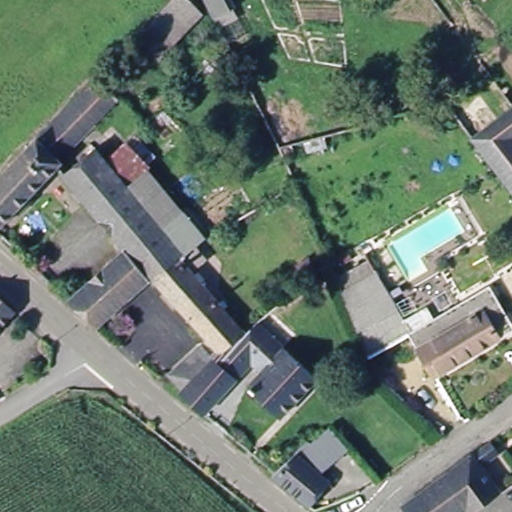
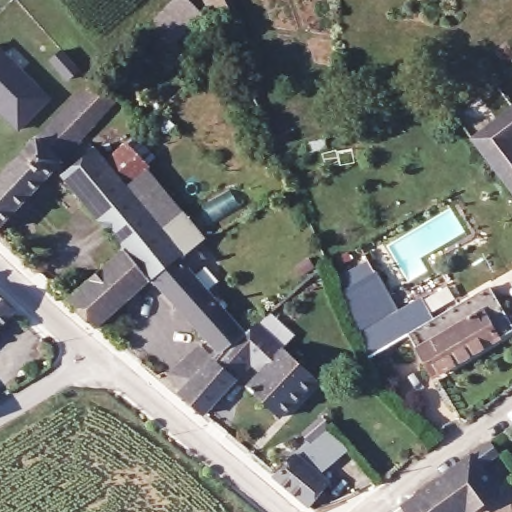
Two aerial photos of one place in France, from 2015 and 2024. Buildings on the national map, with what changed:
unchanged [(163,61),(143,34),(176,0),(190,0),(208,22),(163,61)]
unchanged [(230,0),(232,5),(208,22),(190,0),(230,0)]
new [(57,51),(75,70),(63,80),(46,61),(57,51)]
new [(15,129),(0,115),(0,53),(45,98),(15,129)]
unchanged [(62,163),(69,170),(96,145),(109,158),(134,134),(160,158),(150,168),(185,206),(196,202),(217,228),(186,258),(251,331),(221,359),(241,374),(201,415),(175,393),(187,382),(169,370),(199,339),(152,285),(102,329),(65,298),(122,249),(58,176),(0,231),(0,173),(98,76),(126,96),(62,163)]
unchanged [(494,168),(470,135),(512,105),(512,192),(494,168)]
unchanged [(353,291),(378,276),(407,323),(427,310),(434,322),(490,288),(512,323),(512,332),(440,379),(412,335),(375,358),(353,291)]
unchanged [(0,332),(0,296),(20,315),(0,332)]
unchanged [(282,418),(249,388),(262,371),(256,364),(261,358),(267,350),(274,356),(281,347),(315,378),(282,418)]
unchanged [(277,471),(307,440),(311,444),(332,424),(351,445),(324,469),(330,479),(310,506),(273,475),(277,471)]
unchanged [(489,438),(497,448),(480,462),(498,487),(468,511),(465,507),(457,512),(408,512),(402,505),(472,451),(489,438)]

